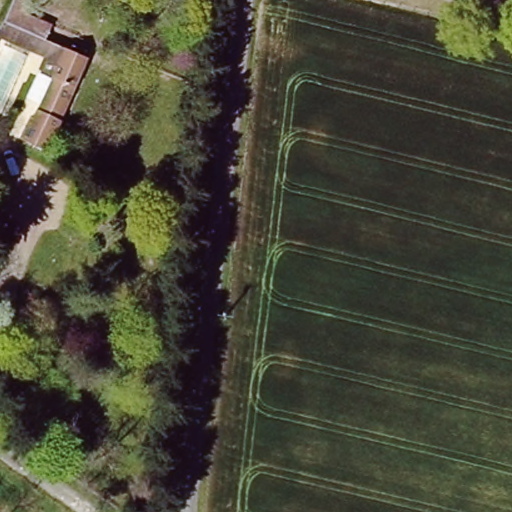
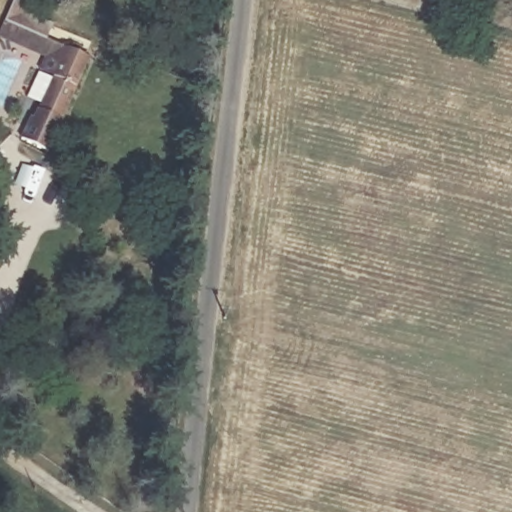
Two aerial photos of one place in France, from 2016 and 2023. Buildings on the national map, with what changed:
unchanged [(92,55),(43,156),(18,139),(50,65),(0,45),(0,24),(6,10),(92,55)]

